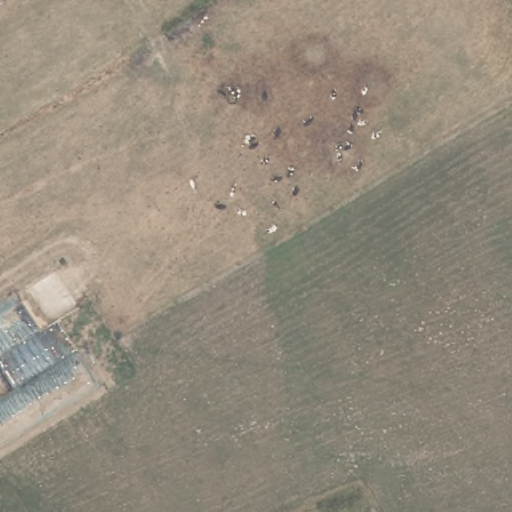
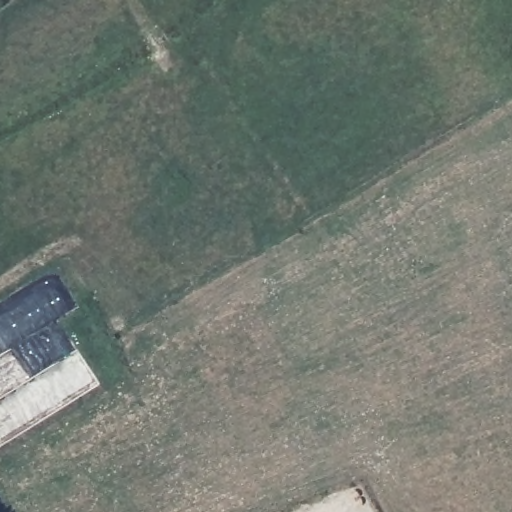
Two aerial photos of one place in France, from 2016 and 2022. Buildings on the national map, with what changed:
[]

